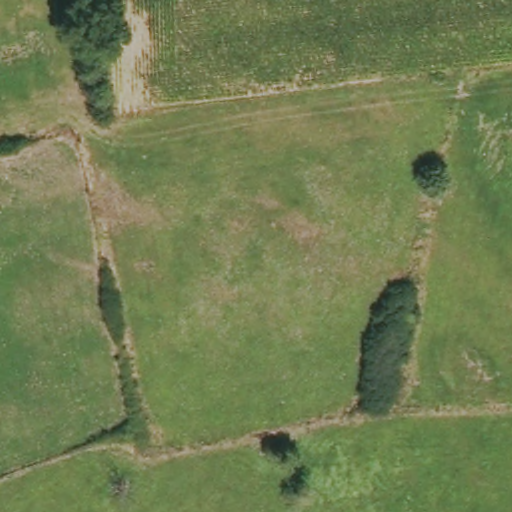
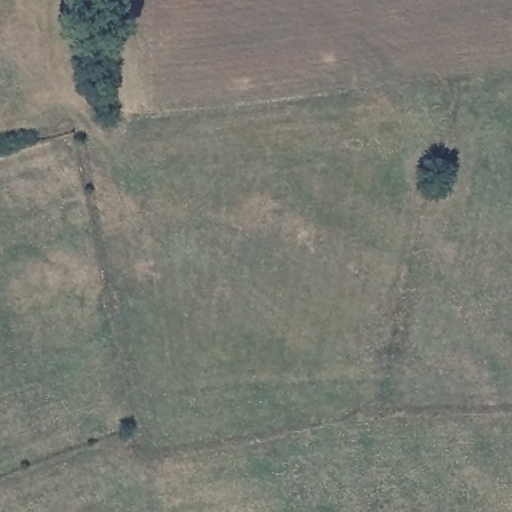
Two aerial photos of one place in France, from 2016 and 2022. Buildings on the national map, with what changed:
[]

